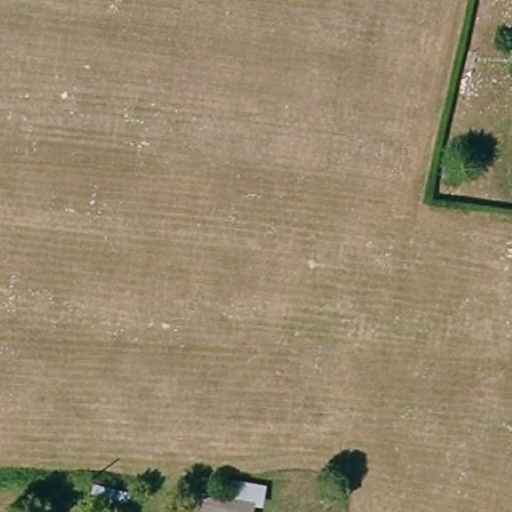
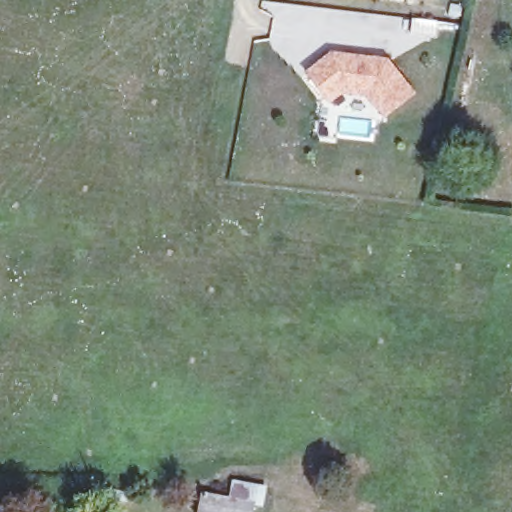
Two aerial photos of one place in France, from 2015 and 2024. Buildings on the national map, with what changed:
new [(415,94),(383,117),(366,97),(342,94),(329,104),(304,72),(330,52),(387,59),(415,94)]
unchanged [(229,498),(230,481),(266,483),(265,505),(254,503),(253,512),(198,512),(198,509),(202,493),(229,498)]

